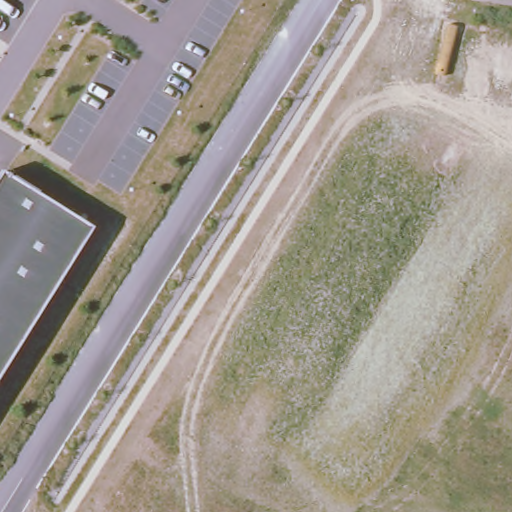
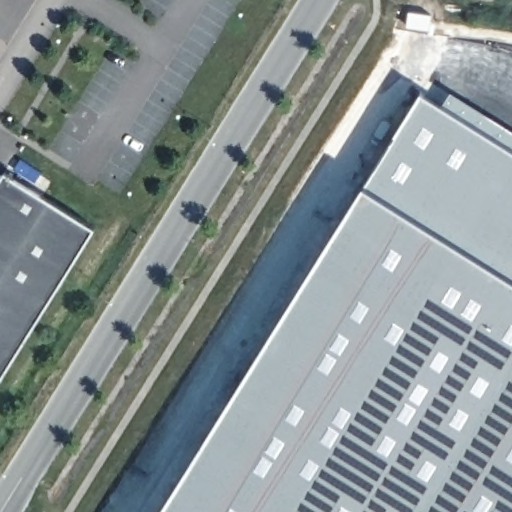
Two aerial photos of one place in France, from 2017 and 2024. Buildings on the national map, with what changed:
new [(449,94),(512,132),(512,512),(159,512),(364,183),(421,92),(442,105),(449,94)]
unchanged [(0,182),(6,171),(94,228),(0,376),(0,182)]

